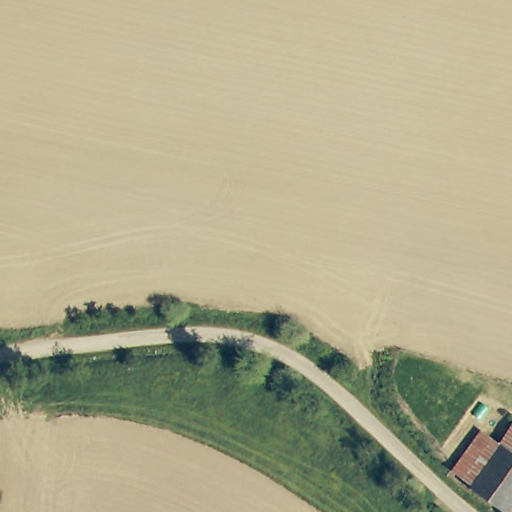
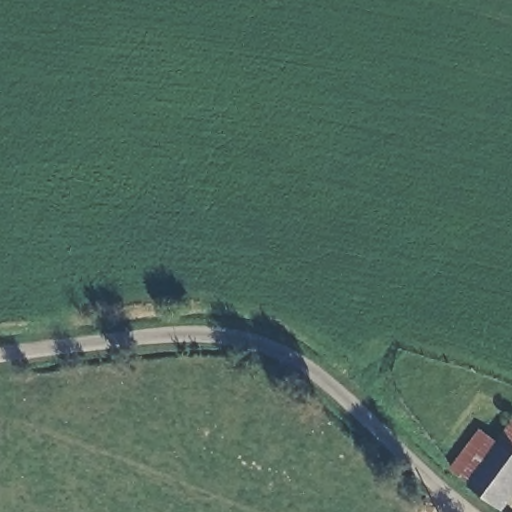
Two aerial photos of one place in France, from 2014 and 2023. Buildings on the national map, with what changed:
unchanged [(472,479),(499,443),(512,425),(512,500),(507,507),(472,479)]
unchanged [(453,464),(479,430),(499,443),(472,479),(453,464)]

